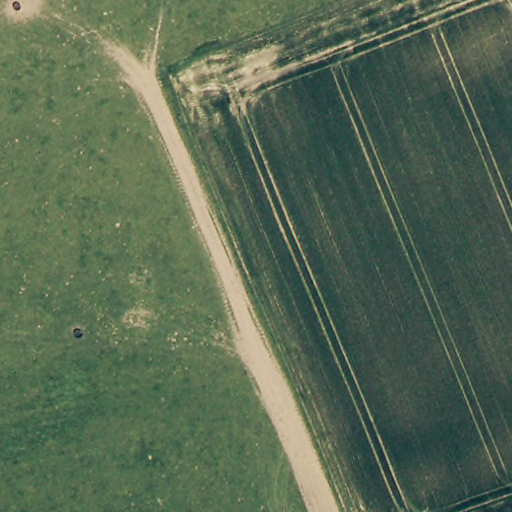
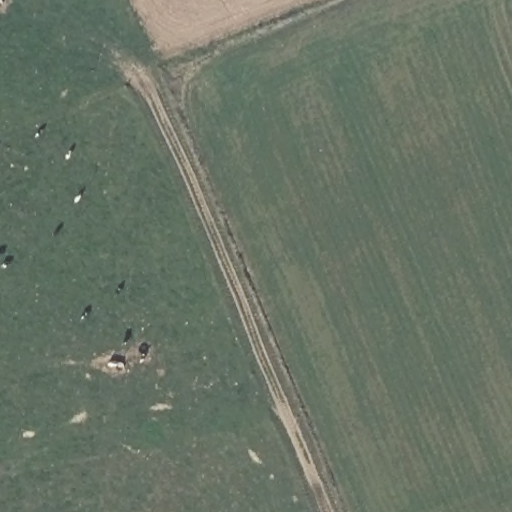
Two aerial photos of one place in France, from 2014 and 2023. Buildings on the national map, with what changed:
[]

